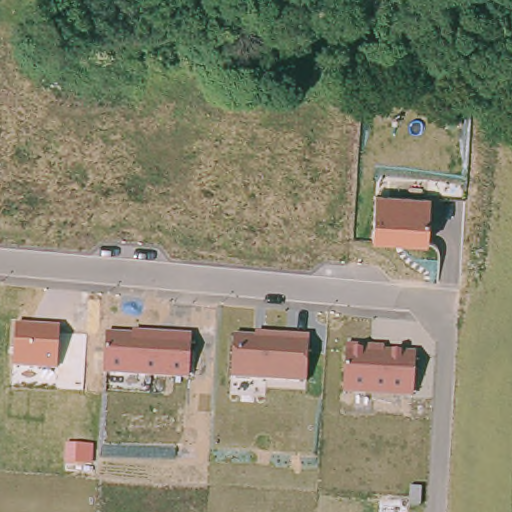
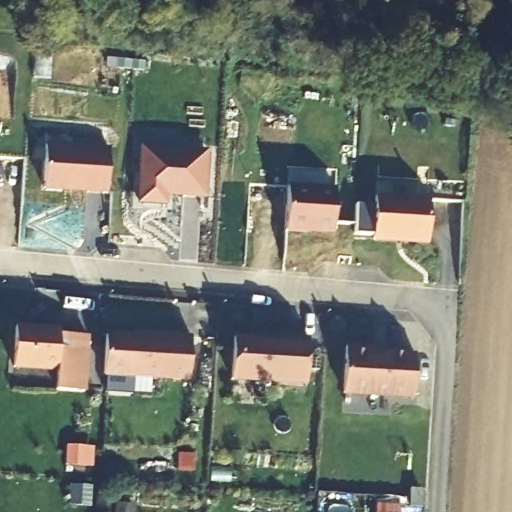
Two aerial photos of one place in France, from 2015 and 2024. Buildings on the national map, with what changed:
new [(42,190),(45,141),(105,145),(105,149),(110,150),(107,194),(42,190)]
new [(205,199),(162,196),(162,206),(135,204),(140,144),(209,148),(205,199)]
new [(333,233),(285,231),(287,184),(335,187),(333,233)]
unchanged [(430,198),(427,244),(373,242),(377,194),(430,198)]
unchanged [(57,371),(14,369),(15,324),(59,326),(57,371)]
unchanged [(191,333),(189,380),(104,376),(105,334),(132,335),(132,330),(191,333)]
unchanged [(309,335),(305,384),(232,380),(235,337),(255,337),(255,331),(309,335)]
new [(88,335),(87,390),(57,389),(57,371),(59,334),(88,335)]
unchanged [(383,351),(415,352),(414,398),(344,394),(347,345),(384,346),(383,351)]

